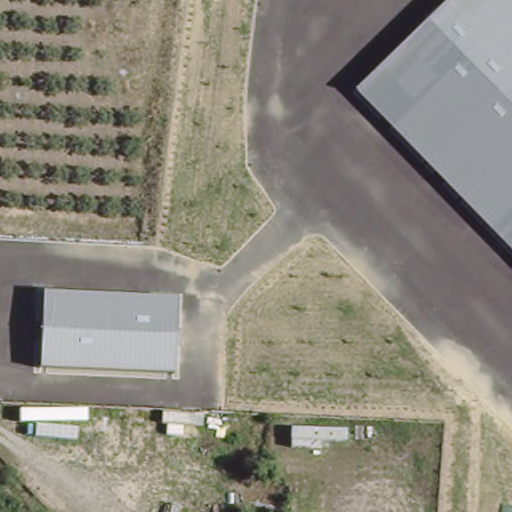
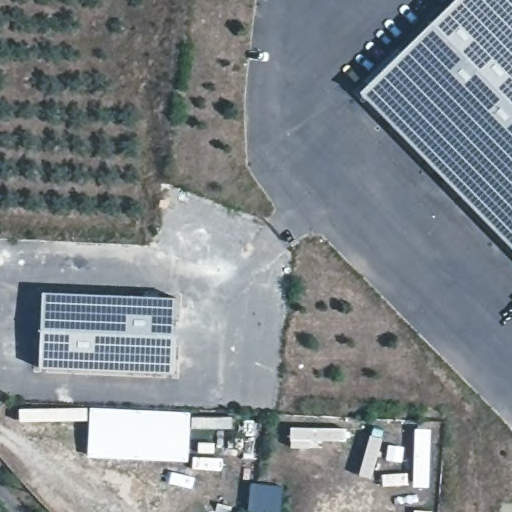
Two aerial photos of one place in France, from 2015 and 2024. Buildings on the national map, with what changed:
unchanged [(512,250),(360,93),(456,0),(512,0),(512,250)]
unchanged [(177,297),(173,373),(39,369),(41,292),(177,297)]
new [(190,412),(187,461),(86,457),(90,407),(190,412)]
new [(251,482),(283,484),(281,512),(274,512),(248,510),(251,482)]

